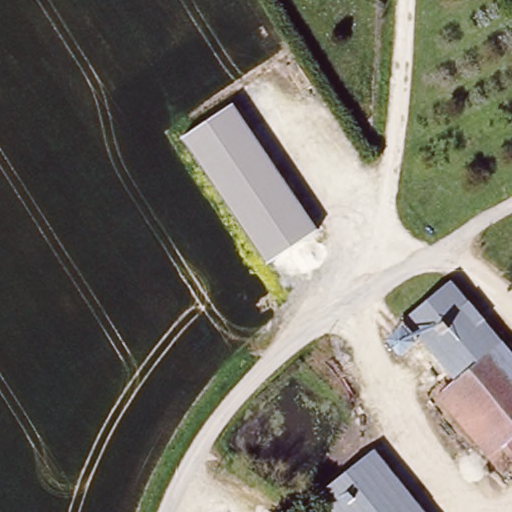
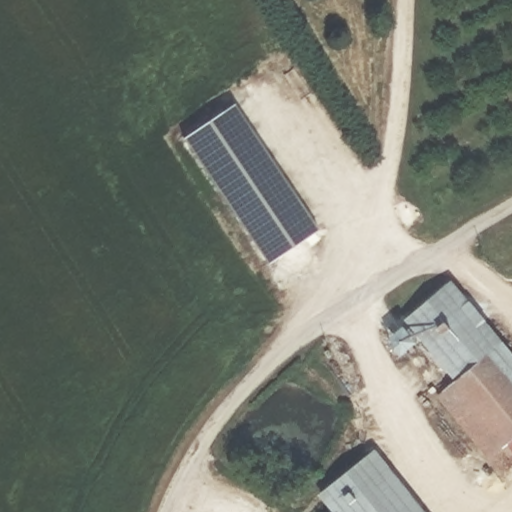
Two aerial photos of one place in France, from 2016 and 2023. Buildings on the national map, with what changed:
unchanged [(236,103),(318,228),(268,261),(183,136),(236,103)]
unchanged [(502,349),(458,382),(410,324),(454,289),(502,349)]
unchanged [(508,475),(443,394),(458,382),(502,349),(512,363),(512,471),(508,475)]
unchanged [(340,512),(329,498),(379,455),(428,512),(340,512)]

